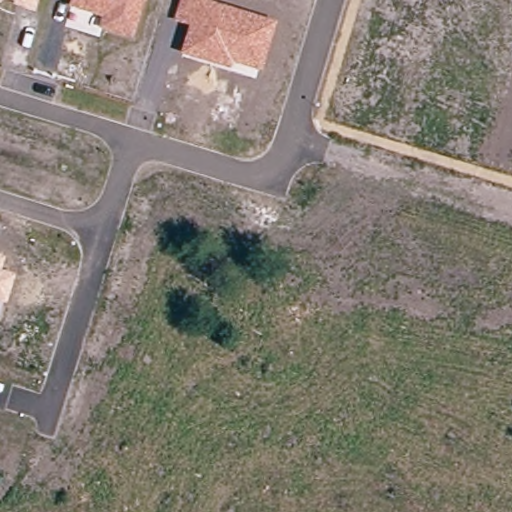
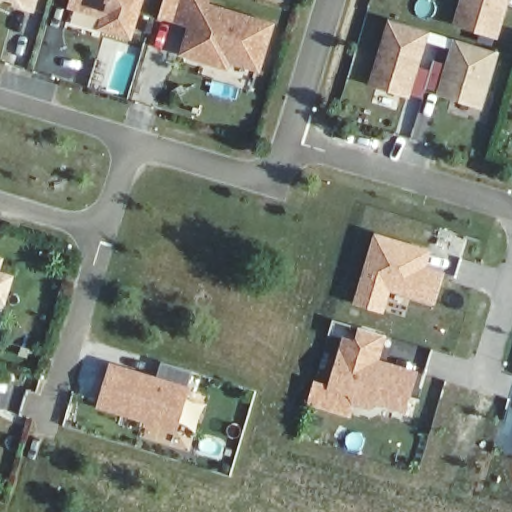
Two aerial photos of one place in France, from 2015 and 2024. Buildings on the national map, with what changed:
unchanged [(35,13),(13,6),(14,2),(6,0),(2,4),(0,3),(0,0),(39,0),(35,13)]
unchanged [(98,32),(100,18),(68,7),(70,0),(145,0),(133,42),(98,32)]
unchanged [(209,3),(275,23),(260,73),(234,65),(232,72),(179,56),(188,27),(174,23),(180,0),(210,0),(209,3)]
new [(452,24),(459,0),(511,0),(499,39),(452,24)]
new [(421,66),(431,70),(425,87),(422,98),(413,94),(411,99),(367,85),(388,18),(432,32),(421,66)]
new [(483,109),(437,95),(438,91),(425,87),(431,70),(434,60),(447,64),(454,38),(501,52),(483,109)]
new [(353,304),(375,233),(432,251),(428,267),(444,273),(435,306),(391,292),(384,313),(353,304)]
unchanged [(1,271),(14,275),(6,305),(0,303),(0,256),(4,257),(1,271)]
new [(379,405),(371,410),(352,404),(350,397),(328,391),(344,337),(356,339),(360,327),(389,337),(381,360),(420,372),(407,415),(379,405)]
new [(158,377),(163,360),(192,370),(188,386),(190,387),(178,432),(95,408),(109,362),(158,377)]

